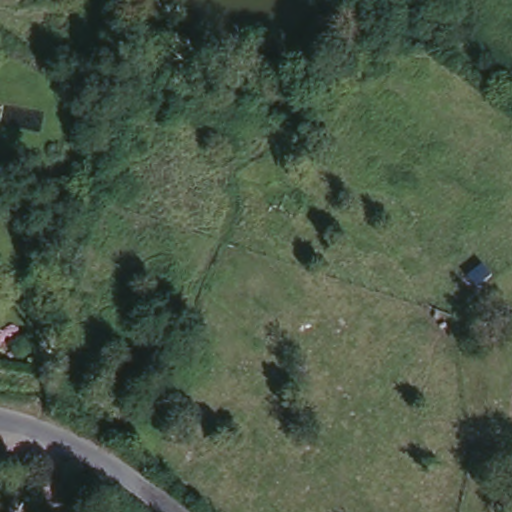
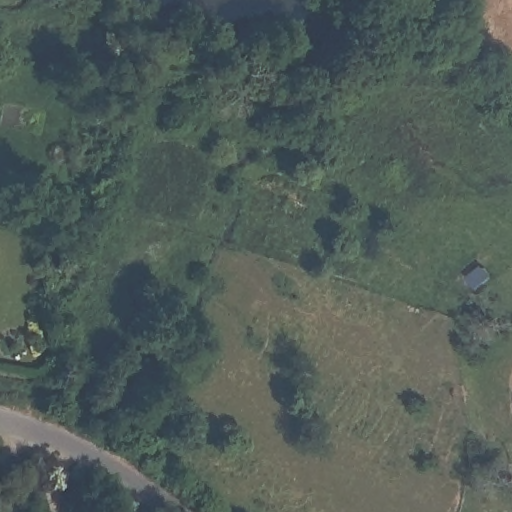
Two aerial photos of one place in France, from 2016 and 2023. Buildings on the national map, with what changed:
unchanged [(294,217),(291,223),(276,215),(280,209),(294,217)]

